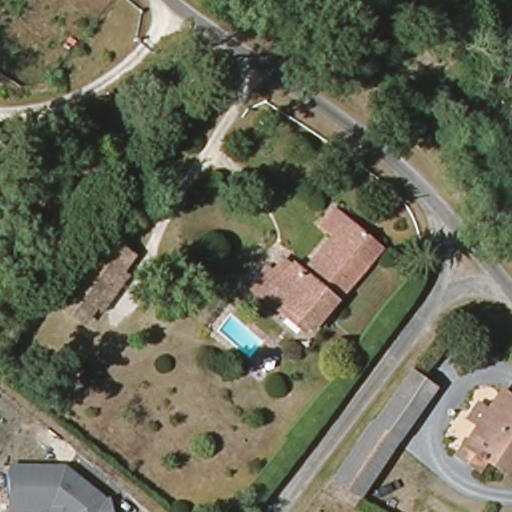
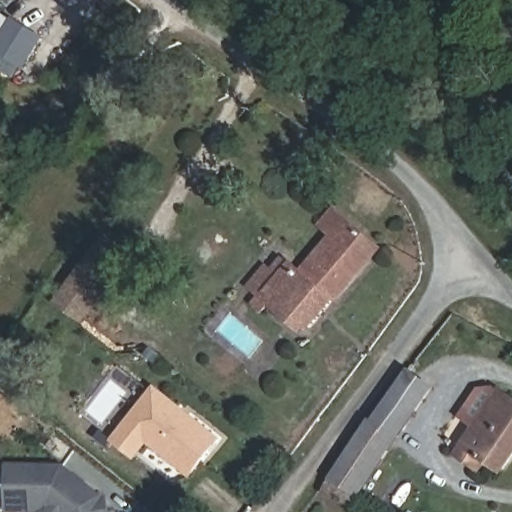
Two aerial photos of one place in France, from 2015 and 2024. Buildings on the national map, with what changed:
new [(44,37),(24,68),(0,53),(0,37),(13,17),(44,37)]
unchanged [(267,304),(263,307),(252,299),(256,294),(248,288),(267,265),(272,270),(283,255),(291,261),(303,269),(331,233),(321,222),(333,207),(381,248),(310,328),(308,326),(306,324),(302,332),(267,304)]
unchanged [(112,228),(137,249),(125,265),(131,269),(105,305),(100,299),(87,315),(60,294),(112,228)]
unchanged [(431,388),(395,439),(371,421),(409,371),(431,388)]
new [(148,445),(135,461),(111,441),(155,385),(222,439),(191,479),(148,445)]
unchanged [(512,399),(512,455),(504,468),(488,455),(480,468),(457,454),(500,391),(512,399)]
unchanged [(371,421),(395,439),(354,497),(328,479),(371,421)]
unchanged [(5,462),(63,462),(109,500),(110,512),(6,512),(5,462)]

